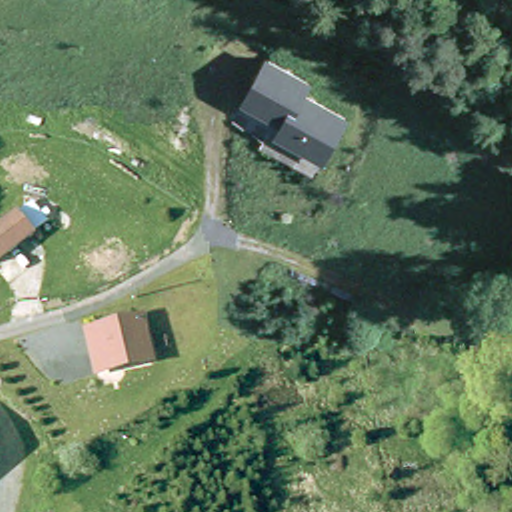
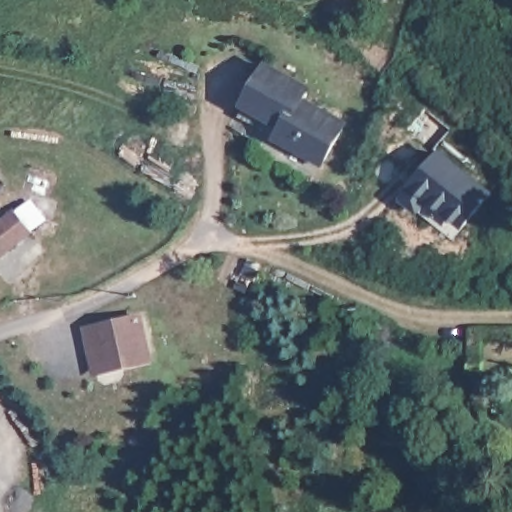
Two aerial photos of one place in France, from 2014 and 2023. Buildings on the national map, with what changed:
unchanged [(245,102),(275,47),(315,71),(310,84),(354,110),(330,152),(277,121),(245,102)]
unchanged [(266,140),(277,121),(330,152),(319,171),(266,140)]
new [(440,147),(490,189),(452,235),(403,195),(440,147)]
unchanged [(25,232),(0,252),(0,219),(9,212),(25,232)]
unchanged [(139,312),(147,352),(105,361),(91,364),(84,324),(98,321),(139,312)]

